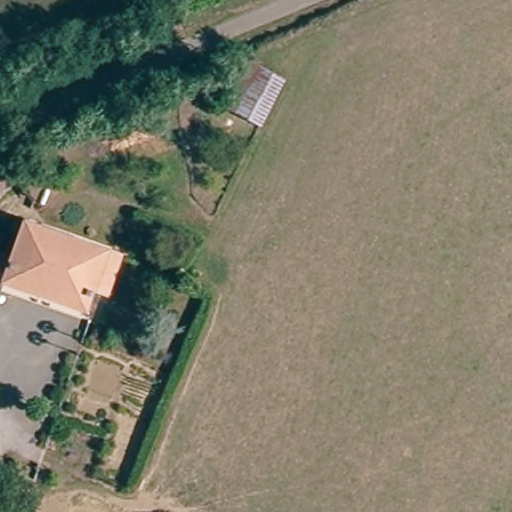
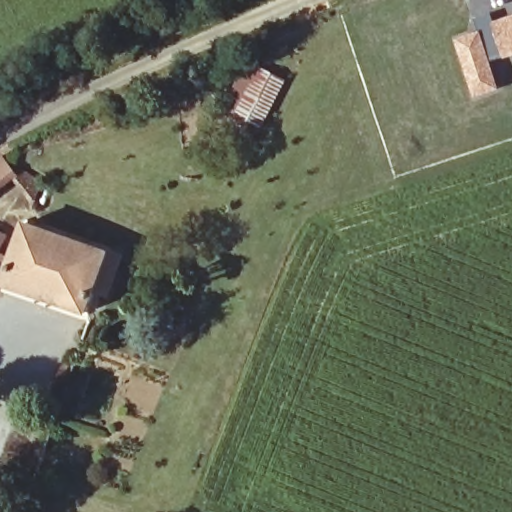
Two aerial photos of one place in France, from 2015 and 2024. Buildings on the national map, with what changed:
new [(512,56),(502,60),(490,21),(512,14),(512,56)]
new [(482,29),(500,90),(471,99),(451,37),(482,29)]
unchanged [(254,62),(285,76),(262,125),(229,108),(254,62)]
unchanged [(3,147),(29,172),(23,191),(0,183),(0,150),(3,147)]
unchanged [(97,296),(90,316),(0,283),(0,255),(2,256),(16,215),(111,252),(124,257),(118,277),(111,301),(97,296)]
unchanged [(1,233),(0,237),(0,233),(1,233)]

